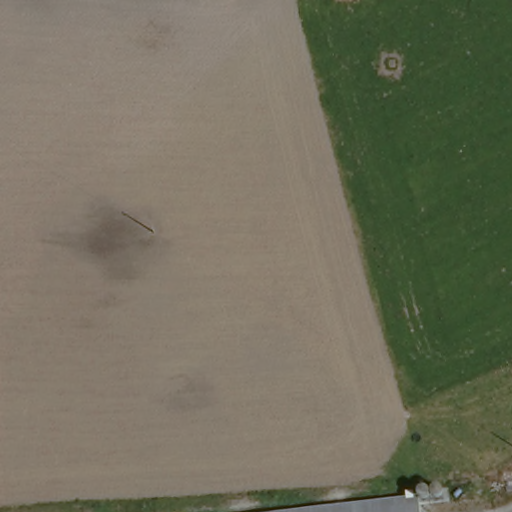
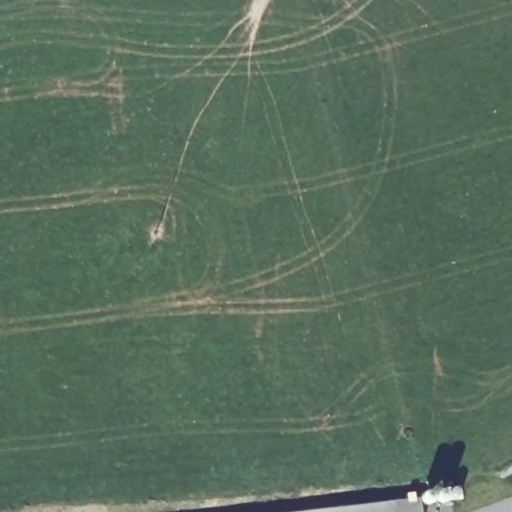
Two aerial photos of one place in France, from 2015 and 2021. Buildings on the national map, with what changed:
unchanged [(422,512),(277,512),(418,495),(422,512)]

